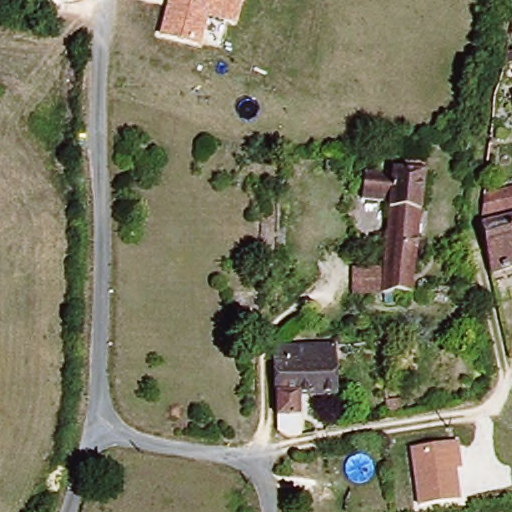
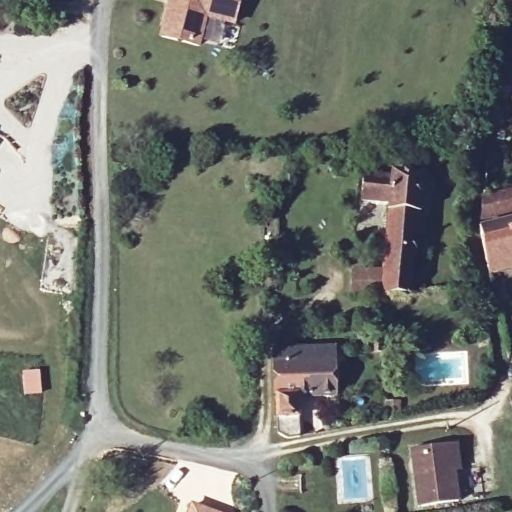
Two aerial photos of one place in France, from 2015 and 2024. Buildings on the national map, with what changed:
unchanged [(208,20),(201,48),(160,36),(169,0),(242,0),(235,26),(208,20)]
unchanged [(377,310),(376,299),(378,294),(345,292),(346,268),(379,271),(384,208),(357,207),(361,182),(386,184),(386,176),(421,178),(417,243),(414,298),(392,299),(391,310),(377,310)]
unchanged [(482,228),(481,198),(512,193),(512,220),(482,228)]
unchanged [(491,280),(482,228),(512,220),(512,275),(491,280)]
unchanged [(287,344),(307,344),(308,362),(337,360),(339,391),(309,393),(311,433),(286,430),(287,344)]
unchanged [(459,441),(464,470),(456,471),(461,501),(418,507),(409,448),(459,441)]
new [(220,512),(187,512),(191,502),(220,512)]

